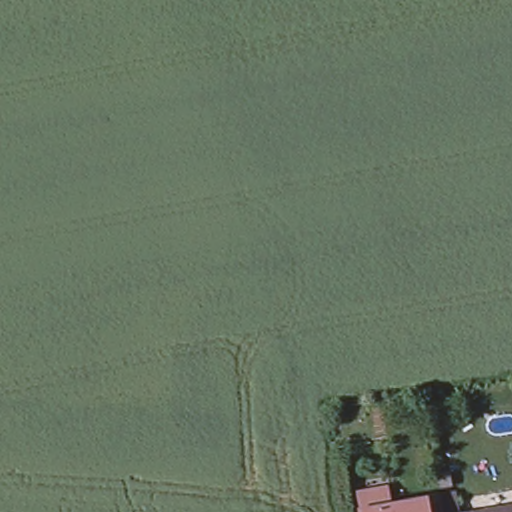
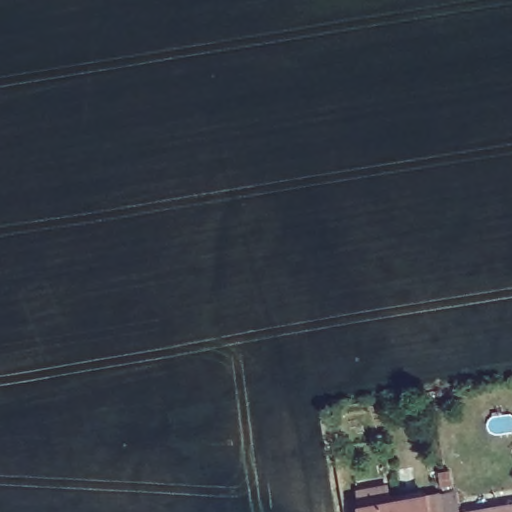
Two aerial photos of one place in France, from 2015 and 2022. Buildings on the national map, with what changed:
unchanged [(420,492),(435,490),(439,512),(355,512),(353,505),(420,492)]
unchanged [(512,512),(457,512),(512,502),(512,512)]

